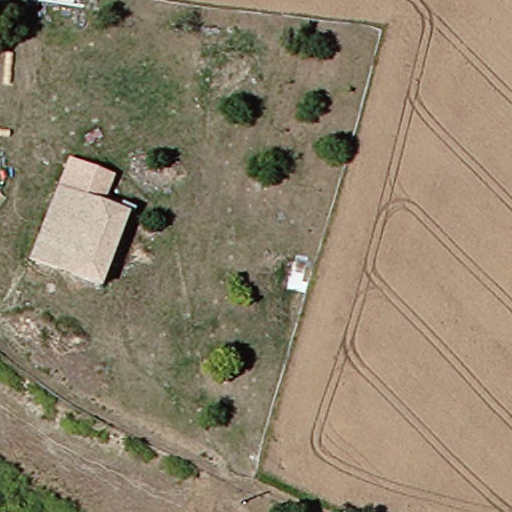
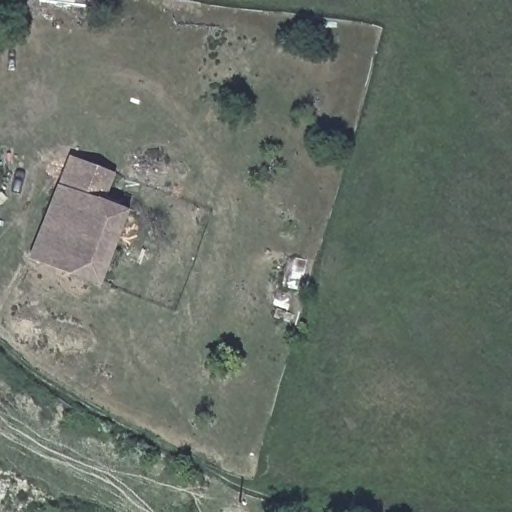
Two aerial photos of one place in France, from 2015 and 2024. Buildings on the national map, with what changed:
unchanged [(69,179),(76,161),(85,164),(94,166),(117,174),(115,185),(113,193),(135,202),(105,285),(37,264),(25,260),(31,242),(43,246),(69,179)]

